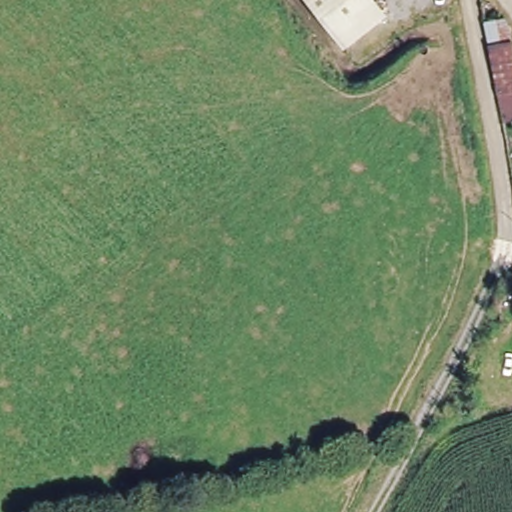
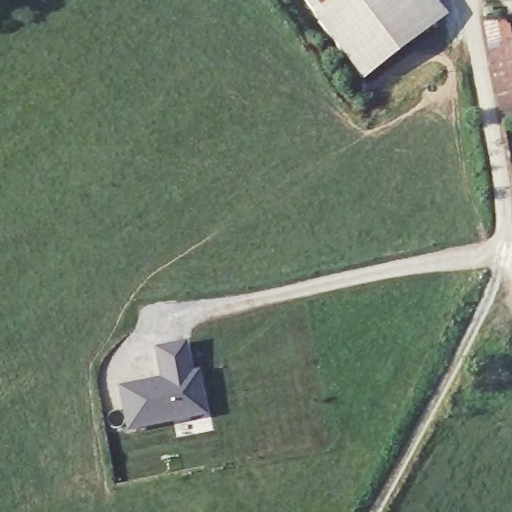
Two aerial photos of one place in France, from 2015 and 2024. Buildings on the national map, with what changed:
new [(303,0),(345,0),(318,20),(303,0)]
demolished [(387,17),(341,51),(318,19),(304,0),(375,0),(387,17)]
new [(345,0),(431,0),(448,23),(366,84),(318,20),(345,0)]
demolished [(504,133),(485,22),(510,14),(512,25),(512,132),(504,133)]
new [(491,39),(512,35),(512,117),(503,119),(491,39)]
new [(161,376),(156,346),(185,342),(190,372),(197,371),(203,412),(126,424),(120,383),(161,376)]

